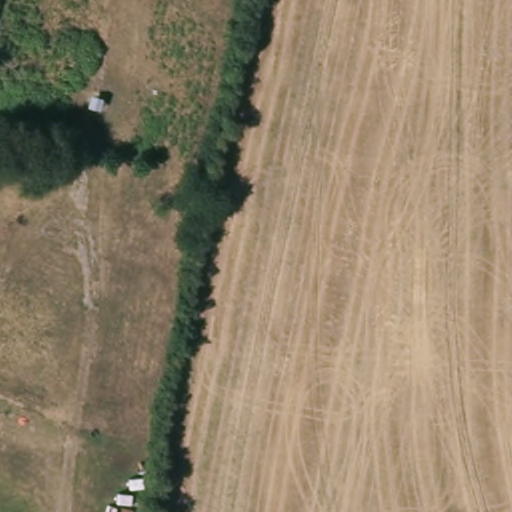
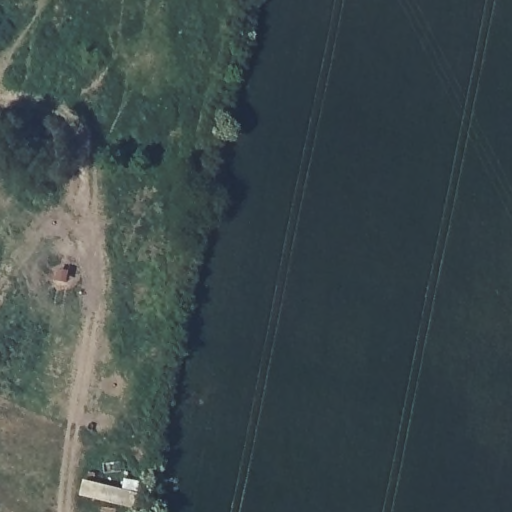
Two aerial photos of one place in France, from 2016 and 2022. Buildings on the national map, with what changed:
[]

